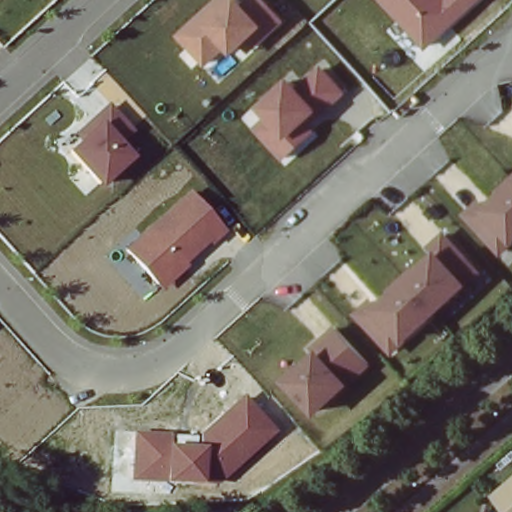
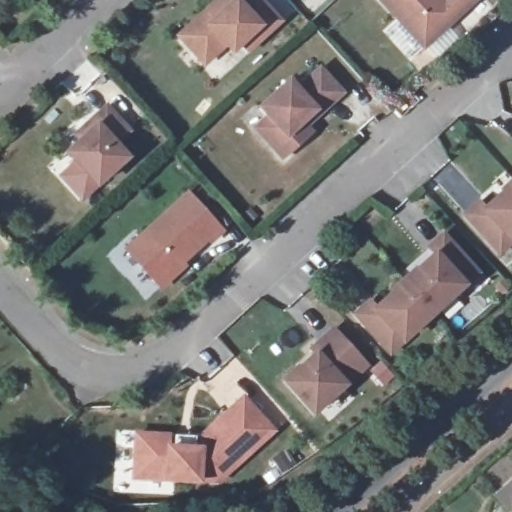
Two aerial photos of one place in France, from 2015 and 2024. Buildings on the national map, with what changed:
unchanged [(284,22),(250,53),(244,47),(236,54),(230,47),(207,69),(176,36),(215,0),(243,0),(246,3),(249,0),(264,0),(284,22)]
unchanged [(426,50),(380,0),(482,0),(426,50)]
unchanged [(350,92),(311,126),(317,131),(282,161),(252,128),(266,115),(259,106),(294,77),(300,83),(322,63),(350,92)]
unchanged [(121,145),(131,158),(97,188),(66,151),(75,140),(70,134),(109,100),(137,131),(121,145)]
unchanged [(463,215),(482,198),(488,204),(512,182),(512,245),(501,255),(463,215)]
unchanged [(210,246),(208,243),(187,263),(190,265),(163,290),(124,247),(189,190),(227,231),(210,246)]
unchanged [(484,272),(392,356),(353,314),(374,295),(381,302),(433,255),(426,249),(446,230),(484,272)]
unchanged [(372,365),(317,418),(282,381),(319,349),(314,345),(335,326),(372,365)]
unchanged [(278,429),(223,485),(132,481),(135,431),(175,432),(174,436),(197,437),(246,394),(278,429)]
unchanged [(512,484),(512,512),(510,512),(497,498),(512,484)]

